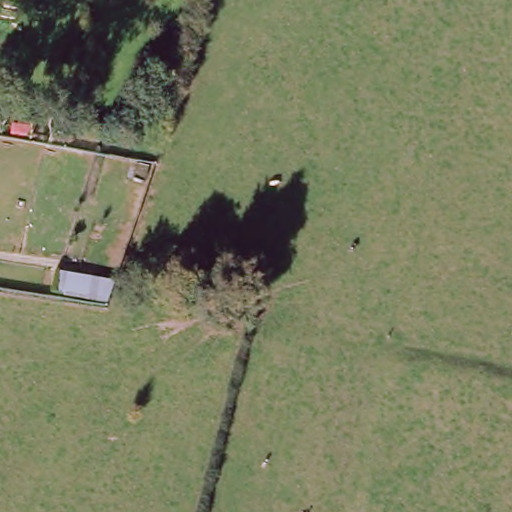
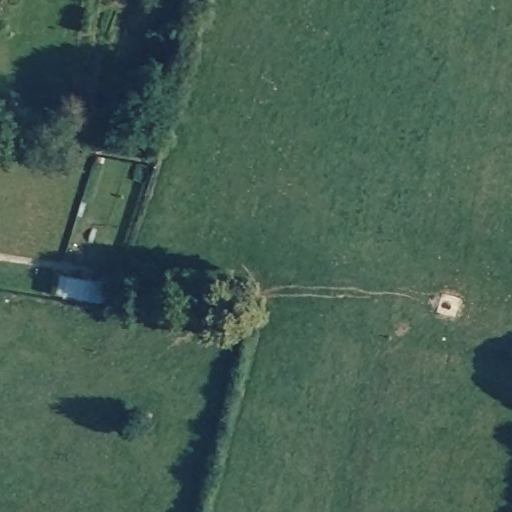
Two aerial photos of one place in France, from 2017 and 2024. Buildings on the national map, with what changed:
unchanged [(108,303),(56,295),(59,276),(114,284),(108,303)]

